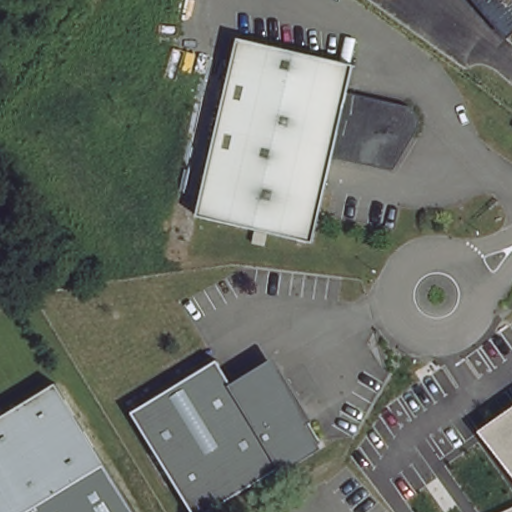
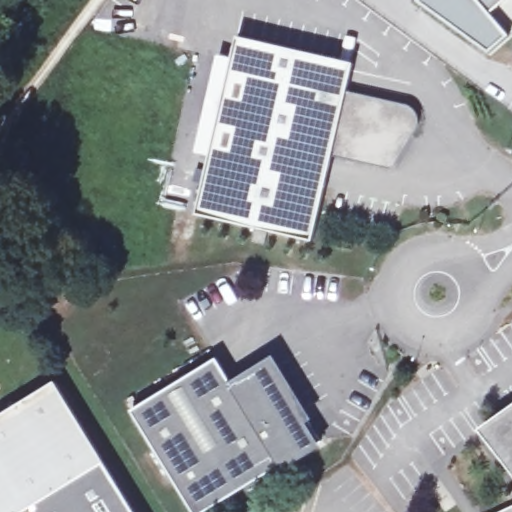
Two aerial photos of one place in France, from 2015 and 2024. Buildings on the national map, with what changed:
new [(421,0),(512,0),(512,33),(509,36),(489,52),(420,1),(421,0)]
unchanged [(196,210),(234,32),(350,57),(344,86),(404,100),(411,104),(414,111),(415,117),(414,121),(412,124),(410,126),(408,129),(366,157),(329,150),(311,236),(196,210)]
unchanged [(213,355),(229,382),(268,359),(316,438),(194,512),(191,512),(127,407),(213,355)]
unchanged [(66,387),(111,468),(136,512),(0,512),(0,427),(66,387)]
unchanged [(512,474),(478,431),(512,407),(512,474)]
unchanged [(512,509),(512,512),(506,512),(512,509)]

